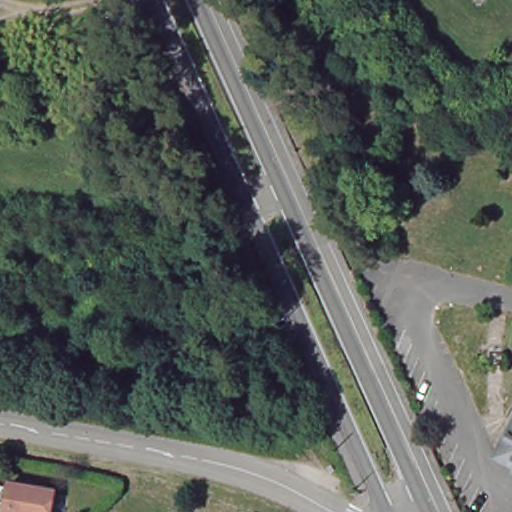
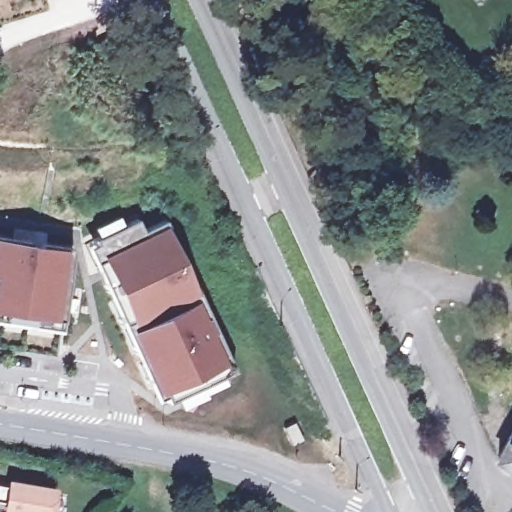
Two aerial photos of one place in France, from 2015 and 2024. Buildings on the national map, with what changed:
new [(210,383),(206,373),(191,380),(192,381),(169,392),(94,230),(138,209),(144,221),(167,210),(181,241),(178,242),(183,252),(185,250),(212,308),(235,360),(225,365),(230,375),(210,383)]
new [(30,232),(26,232),(28,221),(47,224),(46,234),(41,234),(41,237),(30,235),(30,232)]
new [(30,235),(41,237),(41,234),(74,239),(67,288),(78,290),(77,302),(65,300),(63,312),(0,302),(0,228),(30,232),(30,235)]
new [(297,423),(305,441),(295,446),(286,428),(297,423)]
unchanged [(498,457),(512,435),(512,465),(498,457)]
unchanged [(3,480),(0,479),(0,459),(7,460),(3,480)]
unchanged [(35,512),(33,507),(2,501),(5,485),(36,490),(37,486),(82,494),(80,512),(35,512)]

